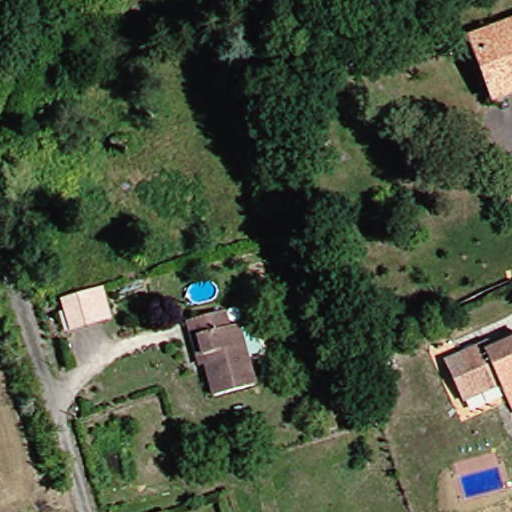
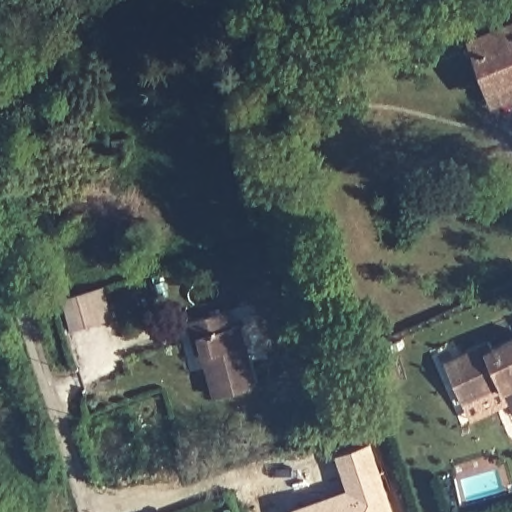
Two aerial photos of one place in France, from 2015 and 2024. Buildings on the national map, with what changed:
unchanged [(477,42),(512,29),(512,96),(501,100),(496,85),(477,42)]
unchanged [(59,296),(90,287),(101,283),(110,313),(99,316),(67,325),(59,296)]
unchanged [(225,312),(229,326),(239,323),(258,383),(220,395),(210,361),(200,363),(193,340),(188,323),(225,312)]
unchanged [(466,401),(455,377),(469,370),(463,353),(492,340),(495,348),(512,341),(512,398),(505,384),(466,401)]
new [(512,398),(512,403),(476,418),(466,401),(505,384),(512,398)]
new [(292,512),(291,507),(348,488),(336,454),(373,442),(397,512),(292,512)]

